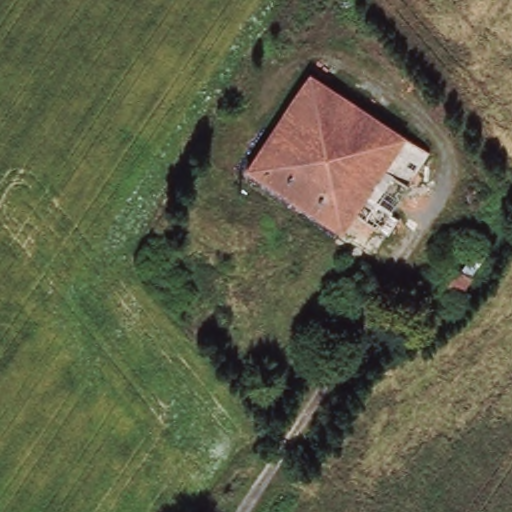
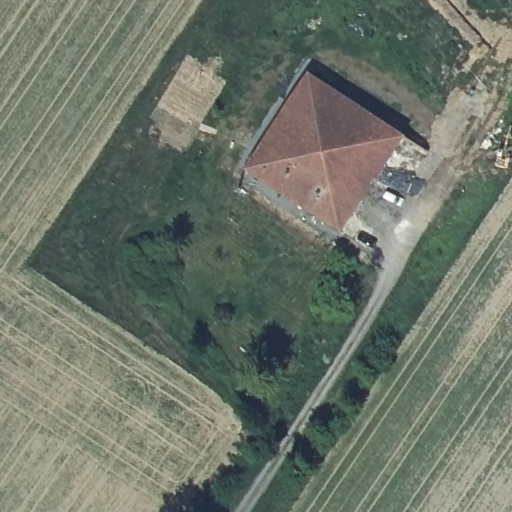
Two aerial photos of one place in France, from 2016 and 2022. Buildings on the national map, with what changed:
unchanged [(380,226),(354,209),(344,225),(252,164),(315,70),(432,148),(410,181),(393,206),(380,226)]
unchanged [(483,294),(463,325),(444,313),(465,284),(483,294)]

